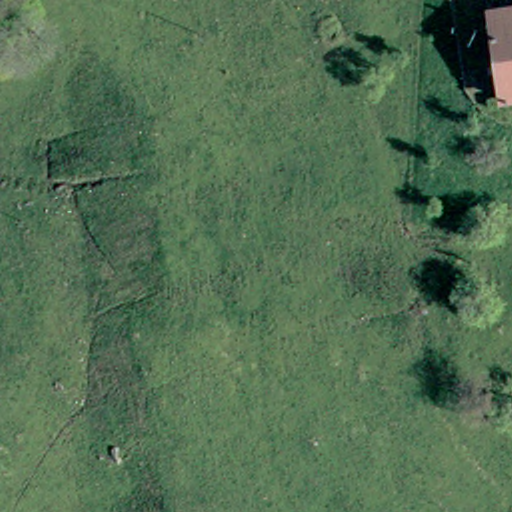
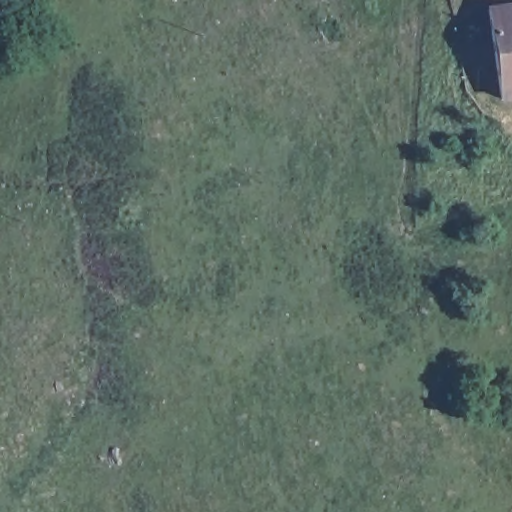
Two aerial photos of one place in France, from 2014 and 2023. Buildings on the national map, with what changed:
unchanged [(483,12),(512,6),(512,92),(498,95),(483,12)]

